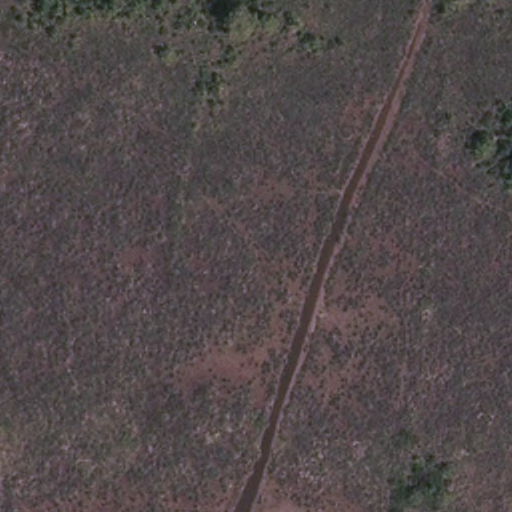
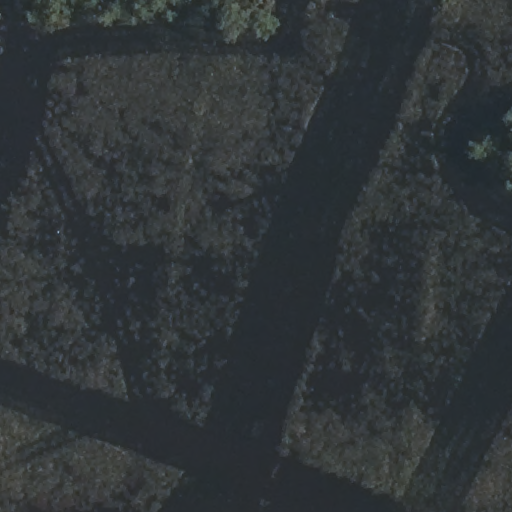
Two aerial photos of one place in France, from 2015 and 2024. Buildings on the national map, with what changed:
[]

